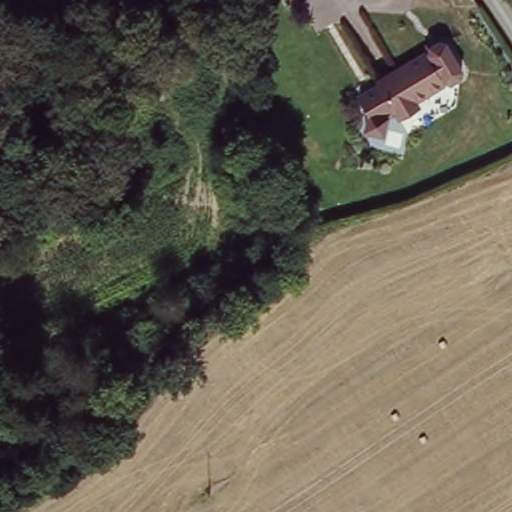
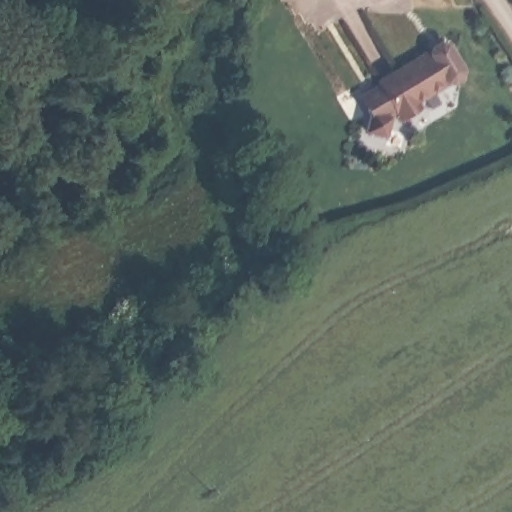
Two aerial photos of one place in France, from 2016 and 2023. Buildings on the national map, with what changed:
unchanged [(428,49),(445,83),(416,98),(420,102),(395,114),(392,107),(384,111),(377,129),(360,123),(366,106),(359,89),(379,80),(378,77),(428,49)]

